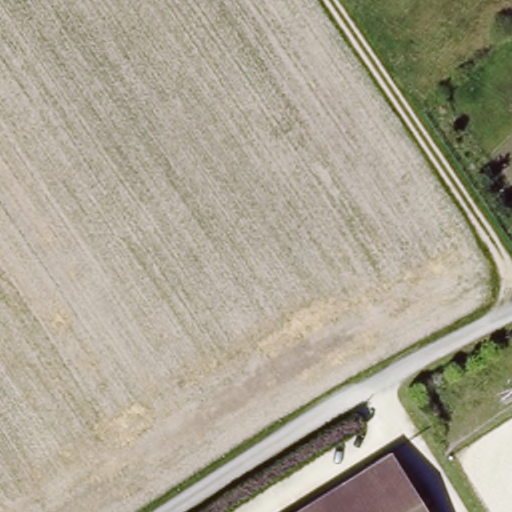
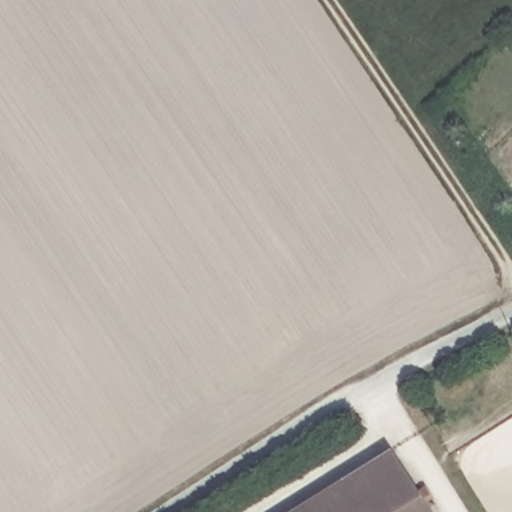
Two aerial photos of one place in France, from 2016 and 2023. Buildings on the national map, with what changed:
unchanged [(387,450),(427,512),(286,512),(387,450)]

